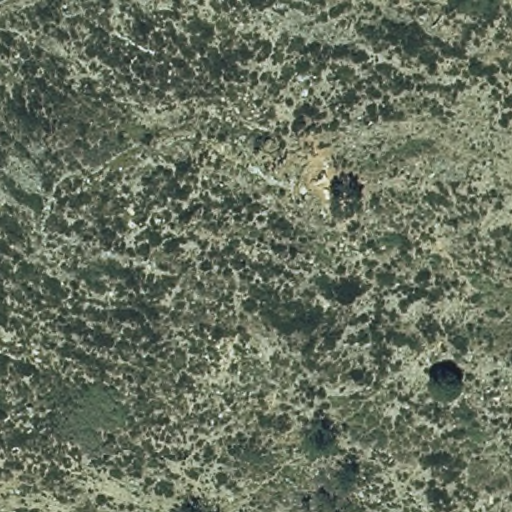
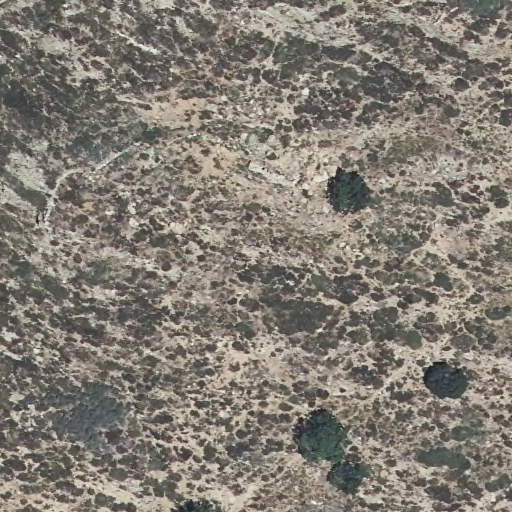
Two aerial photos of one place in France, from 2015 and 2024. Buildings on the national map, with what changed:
[]

